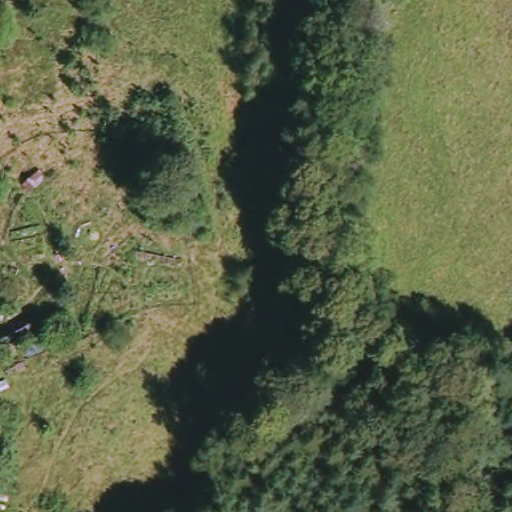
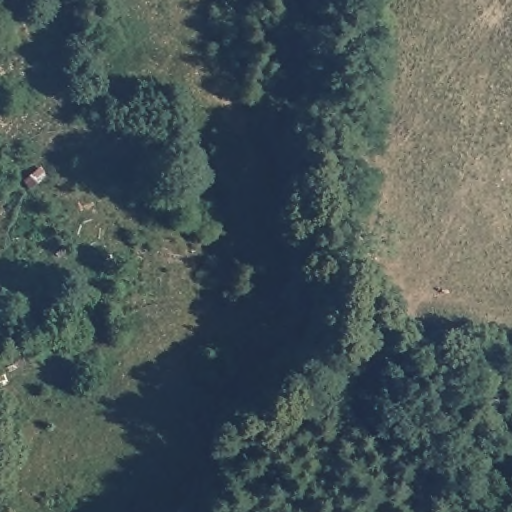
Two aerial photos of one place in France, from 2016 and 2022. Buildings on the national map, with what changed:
unchanged [(75,237),(75,230),(76,226),(82,222),(89,221),(95,222),(100,229),(100,237),(95,244),(89,246),(84,246),(78,241),(75,237)]

